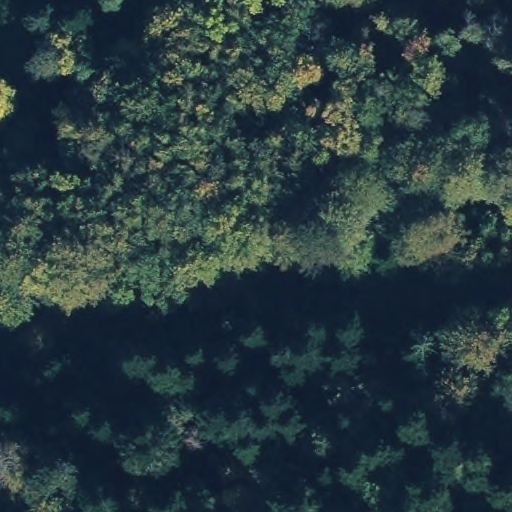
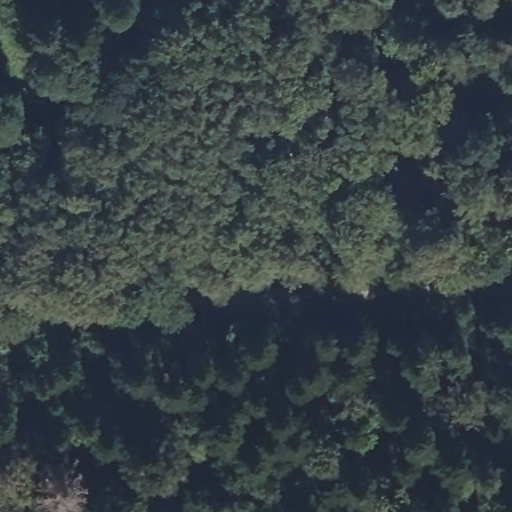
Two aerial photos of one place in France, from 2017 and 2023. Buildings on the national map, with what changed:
unchanged [(15,85),(30,94),(21,101),(10,91),(15,85)]

